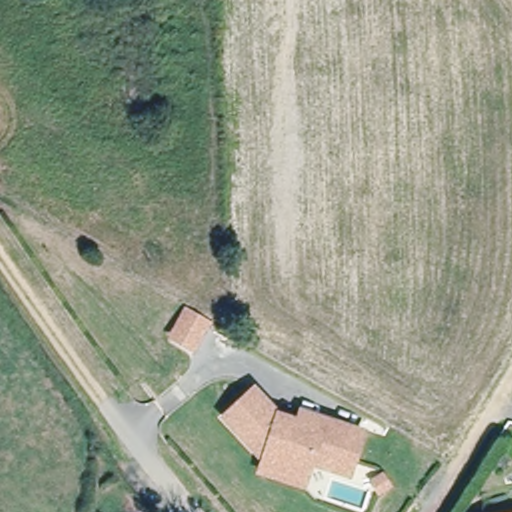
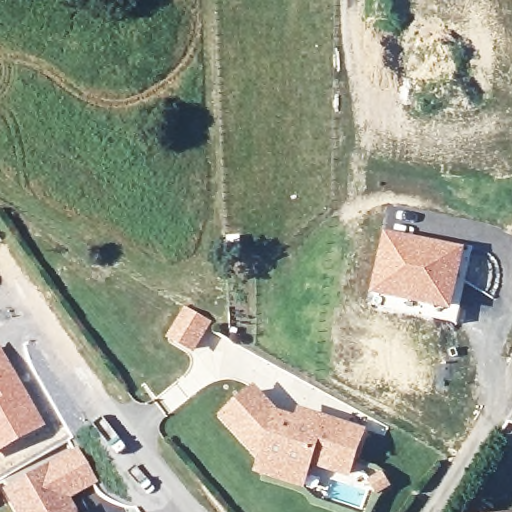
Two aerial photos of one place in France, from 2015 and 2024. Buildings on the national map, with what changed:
new [(384,230),(466,247),(455,311),(371,294),(384,230)]
unchanged [(167,333),(182,306),(199,316),(202,318),(187,345),(167,333)]
new [(45,427),(0,452),(0,348),(45,427)]
unchanged [(260,456),(226,420),(255,392),(280,418),(300,425),(303,415),(323,422),(363,435),(350,476),(311,463),(308,472),(303,486),(262,473),(266,458),(260,456)]
new [(97,482),(69,501),(72,506),(75,512),(14,512),(2,490),(78,446),(97,482)]

